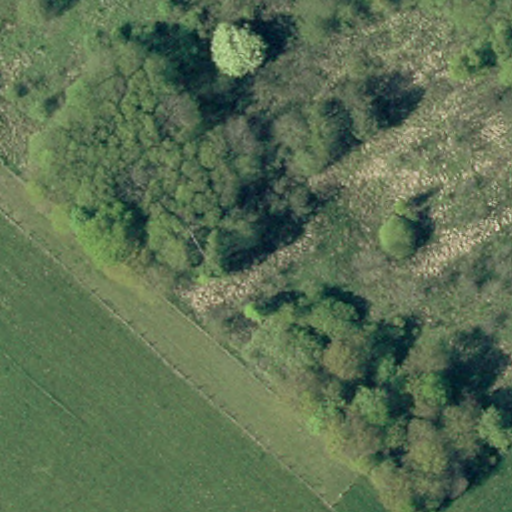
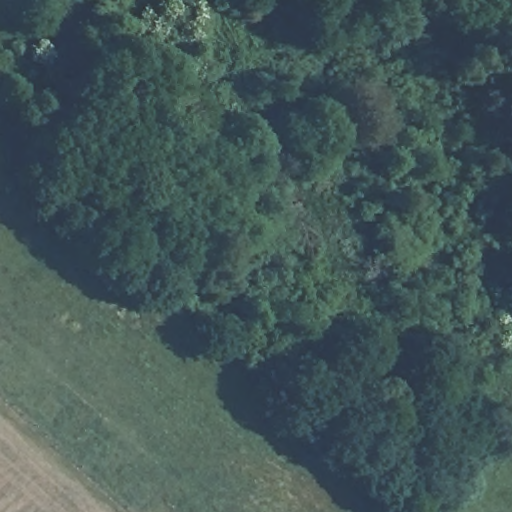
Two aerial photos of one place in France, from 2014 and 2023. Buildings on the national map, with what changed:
[]

